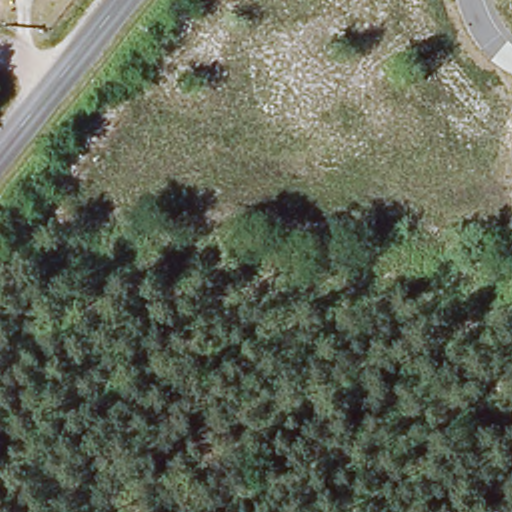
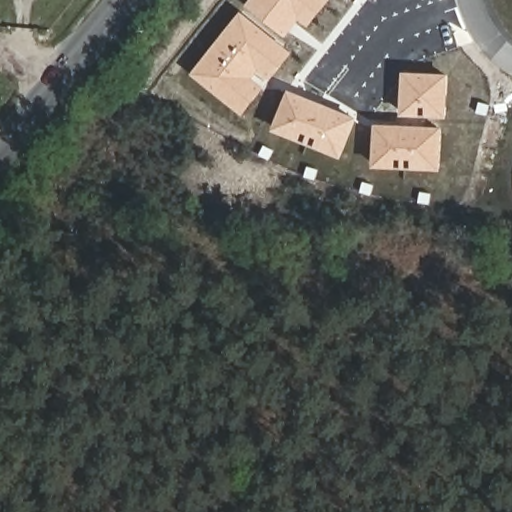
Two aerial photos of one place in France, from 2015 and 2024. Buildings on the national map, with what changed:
new [(332,0),(311,27),(301,19),(287,37),(247,6),(251,0),(332,0)]
new [(245,116),(194,74),(243,11),(294,51),(245,116)]
new [(404,74),(448,75),(444,119),(401,118),(404,74)]
new [(290,91),(359,118),(343,159),(275,131),(290,91)]
new [(441,172),(372,170),(375,126),(440,127),(441,172)]

